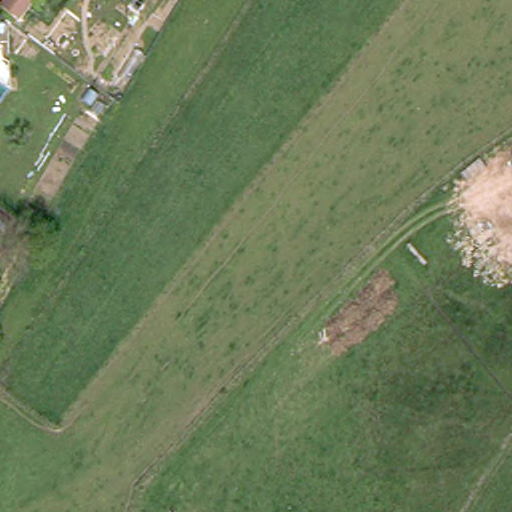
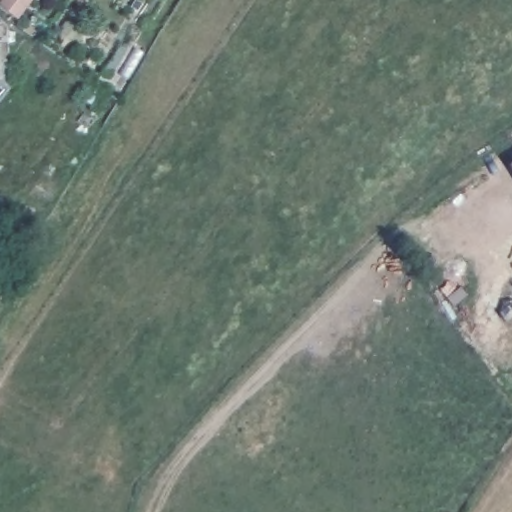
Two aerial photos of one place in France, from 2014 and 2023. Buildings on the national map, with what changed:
unchanged [(18,21),(0,8),(0,2),(2,0),(33,0),(18,21)]

